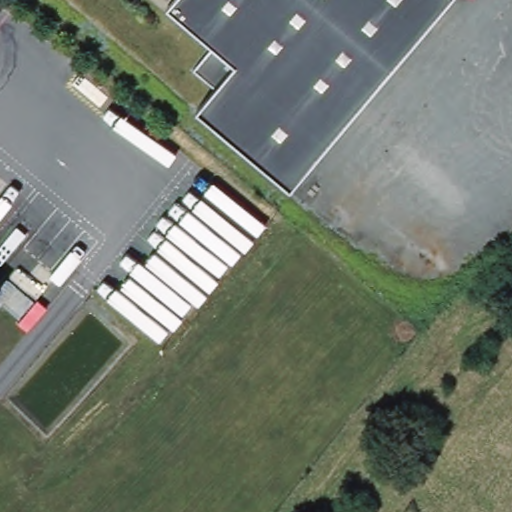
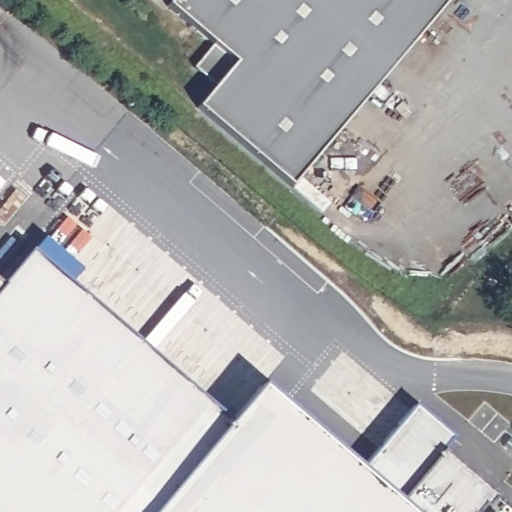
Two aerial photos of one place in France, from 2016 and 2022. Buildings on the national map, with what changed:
unchanged [(233,62),(165,5),(169,0),(443,0),(289,185),(196,107),(233,62)]
new [(11,282),(7,279),(30,252),(235,418),(157,512),(0,512),(0,295),(11,282)]
unchanged [(11,282),(0,295),(0,273),(11,282)]
new [(263,386),(412,512),(157,512),(235,418),(263,386)]
new [(482,500),(477,497),(484,486),(491,491),(493,487),(512,503),(512,512),(473,512),(482,500)]

